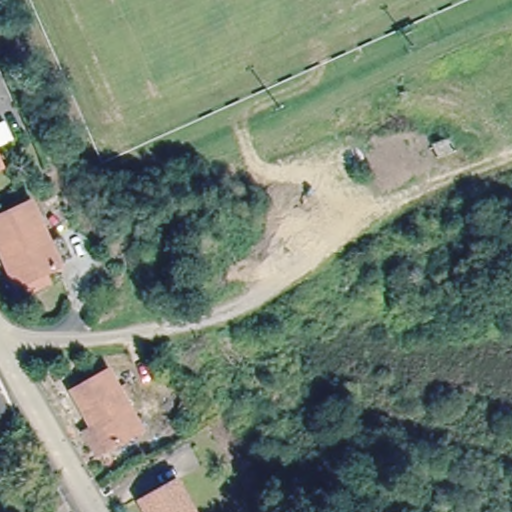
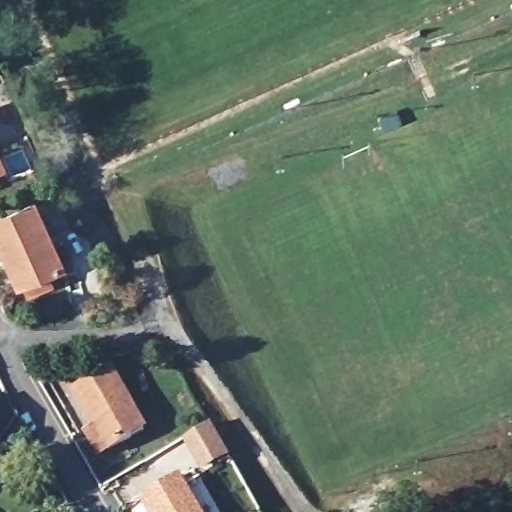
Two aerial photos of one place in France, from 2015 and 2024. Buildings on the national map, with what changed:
unchanged [(0,168),(0,154),(6,166),(0,168)]
unchanged [(32,276),(25,279),(0,222),(0,215),(41,198),(69,260),(54,267),(58,276),(37,286),(32,276)]
unchanged [(143,429),(108,450),(75,391),(110,372),(143,429)]
new [(199,473),(184,439),(211,423),(229,458),(199,473)]
unchanged [(149,512),(142,500),(178,479),(196,512),(149,512)]

